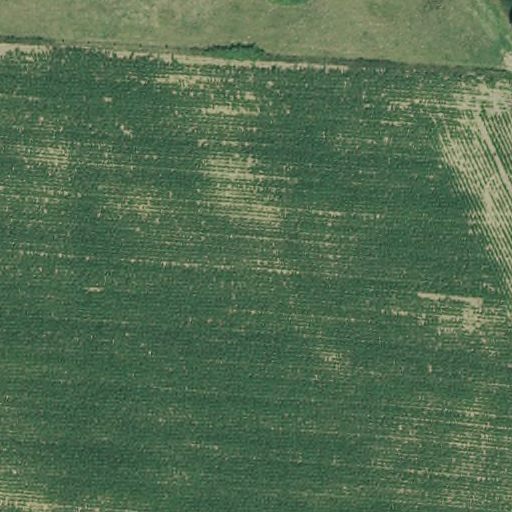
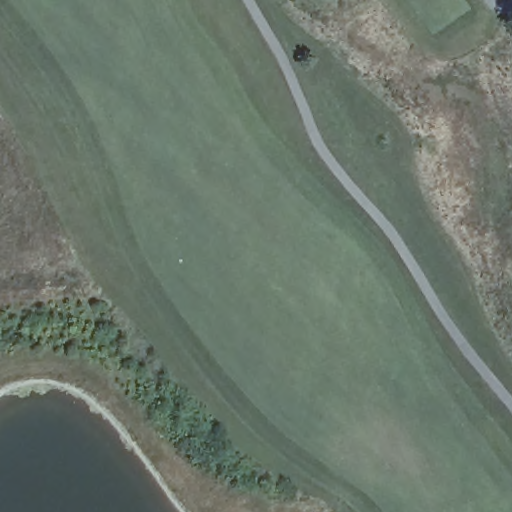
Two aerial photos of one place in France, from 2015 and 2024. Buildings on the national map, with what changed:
[]

